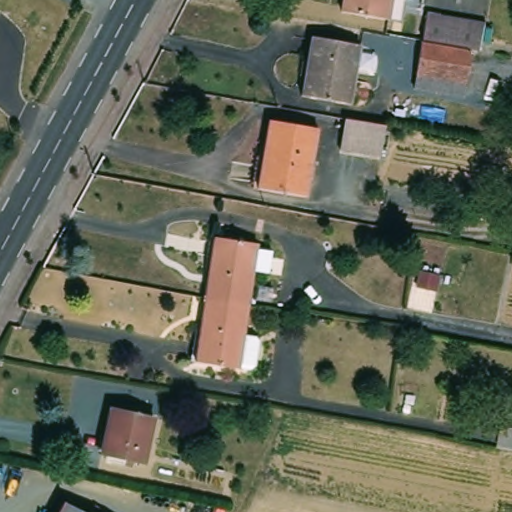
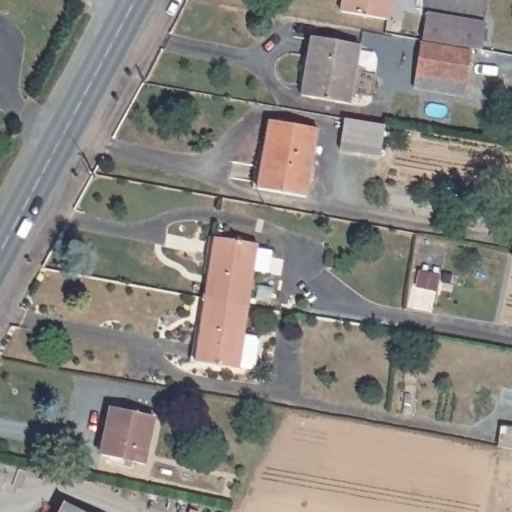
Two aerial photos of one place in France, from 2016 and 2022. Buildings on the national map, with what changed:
unchanged [(346,0),(394,0),(390,19),(344,10),(346,0)]
unchanged [(429,8),(487,18),(483,49),(424,39),(429,8)]
unchanged [(316,36),(364,44),(351,103),(305,95),(316,36)]
unchanged [(425,43),(475,52),(468,95),(417,87),(425,43)]
unchanged [(275,119),(321,127),(310,194),(263,185),(275,119)]
unchanged [(382,126),(377,157),(338,150),(343,120),(382,126)]
unchanged [(220,235),(265,243),(254,303),(209,295),(220,235)]
unchanged [(262,343),(258,366),(254,368),(243,366),(197,359),(209,295),(254,303),(248,337),(260,339),(262,343)]
unchanged [(116,406),(156,413),(148,459),(107,452),(116,406)]
unchanged [(84,512),(67,512),(70,505),(84,512)]

